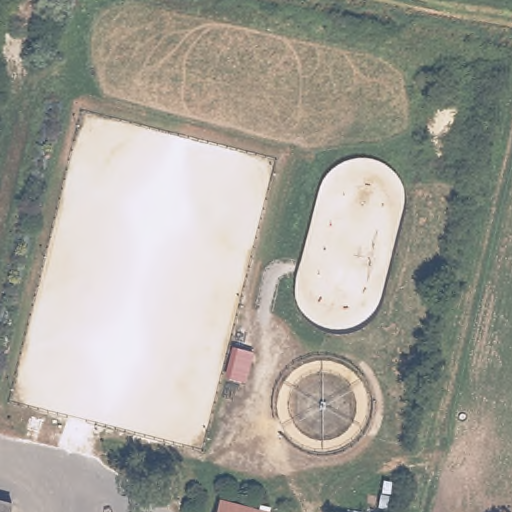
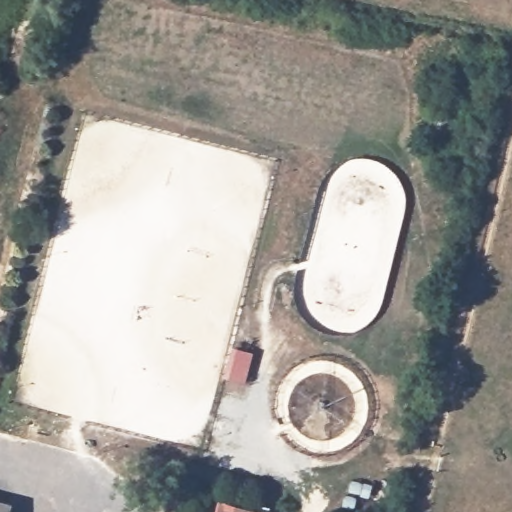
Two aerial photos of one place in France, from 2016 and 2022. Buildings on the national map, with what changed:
unchanged [(10,501),(7,512),(0,512),(0,498),(10,501)]
unchanged [(214,512),(217,499),(268,512),(214,512)]

